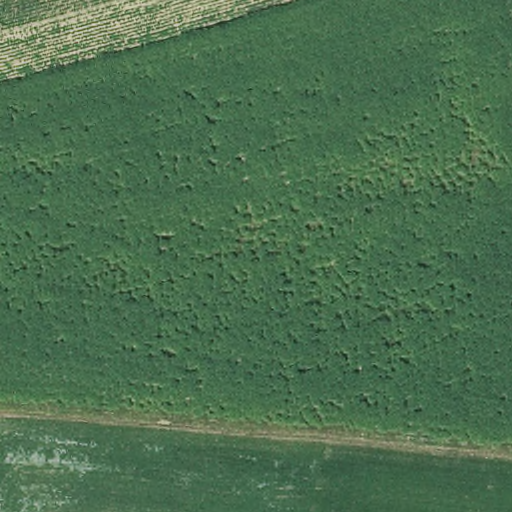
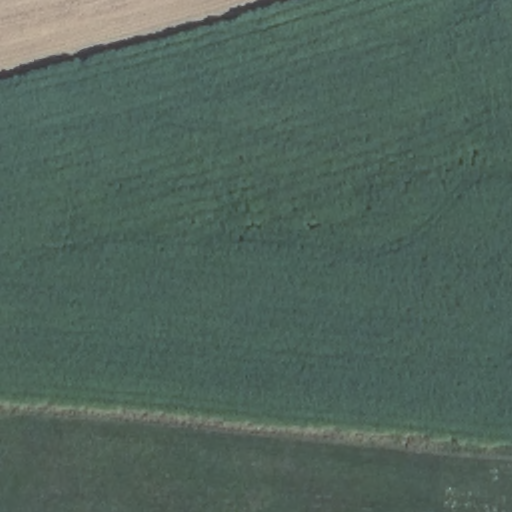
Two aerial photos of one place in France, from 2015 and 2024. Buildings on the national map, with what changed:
[]

